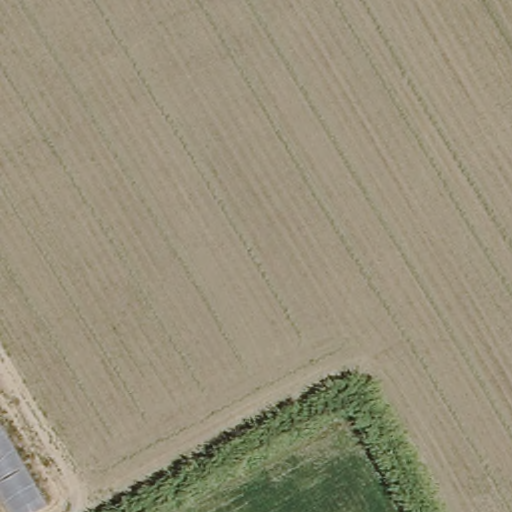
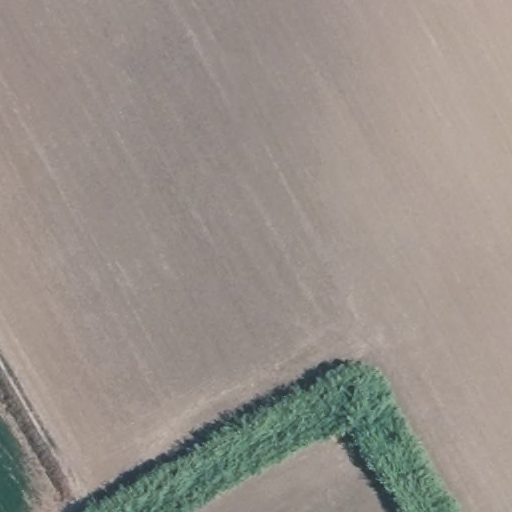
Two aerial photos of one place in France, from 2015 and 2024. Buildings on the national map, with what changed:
demolished [(54,512),(0,512),(0,420),(54,512)]

